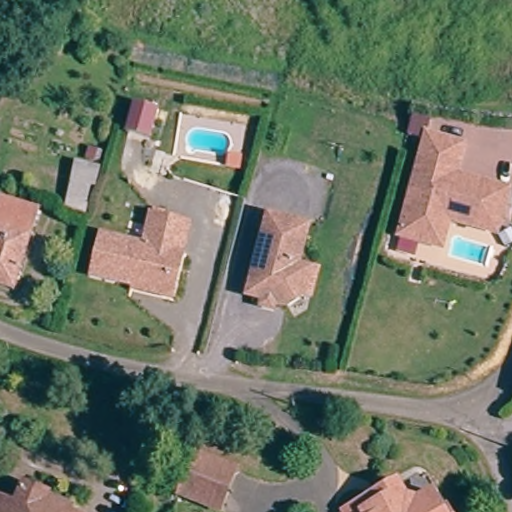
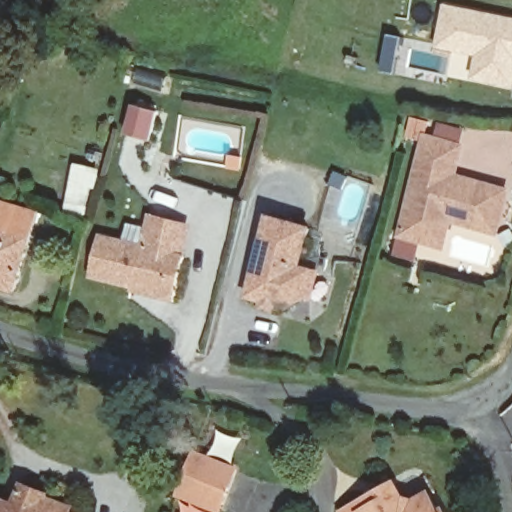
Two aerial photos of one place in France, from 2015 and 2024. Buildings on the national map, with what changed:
new [(480,51),(441,43),(450,4),(512,19),(512,83),(494,79),(475,75),(480,51)]
unchanged [(153,135),(129,129),(136,99),(160,105),(153,135)]
unchanged [(405,230),(407,218),(429,130),(465,139),(457,168),(490,177),(511,182),(501,224),(453,212),(450,228),(447,240),(405,230)]
unchanged [(69,216),(60,214),(70,170),(82,173),(94,176),(90,189),(87,188),(80,218),(69,216)]
unchanged [(25,234),(12,290),(0,287),(0,205),(29,211),(25,234)]
unchanged [(266,298),(267,291),(251,287),(270,209),(311,218),(301,257),(315,261),(308,287),(291,297),(280,294),(278,301),(266,298)]
unchanged [(160,291),(90,276),(99,237),(141,246),(148,216),(184,223),(177,255),(170,293),(160,291)]
unchanged [(175,491),(186,451),(227,463),(215,503),(175,491)]
unchanged [(20,500),(27,480),(76,499),(73,508),(82,512),(0,512),(0,500),(2,494),(20,500)]
unchanged [(350,509),(397,482),(407,499),(422,502),(435,494),(444,509),(451,505),(455,512),(352,512),(350,509)]

